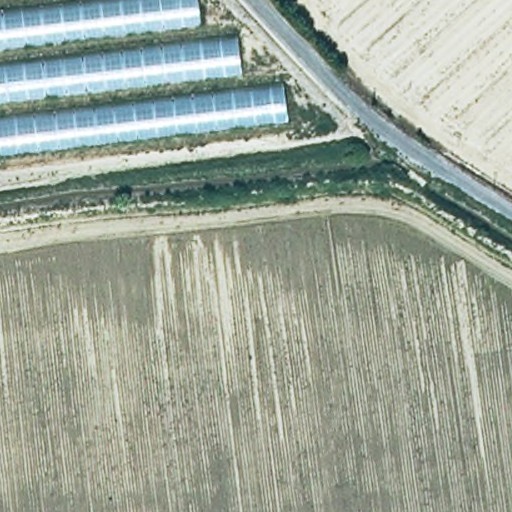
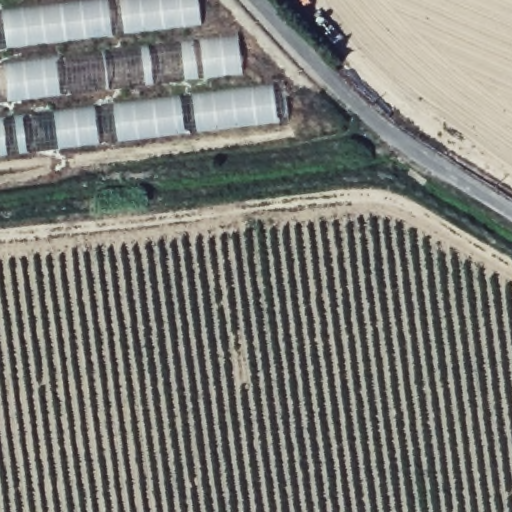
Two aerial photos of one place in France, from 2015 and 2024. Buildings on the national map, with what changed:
unchanged [(236,39),(242,89),(290,84),(295,128),(0,163),(0,0),(196,0),(202,42),(236,39)]

